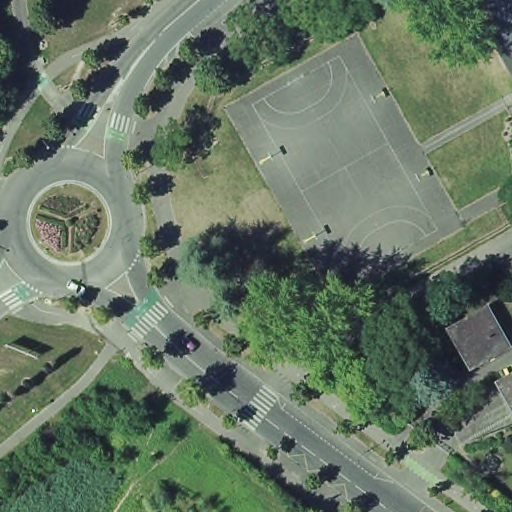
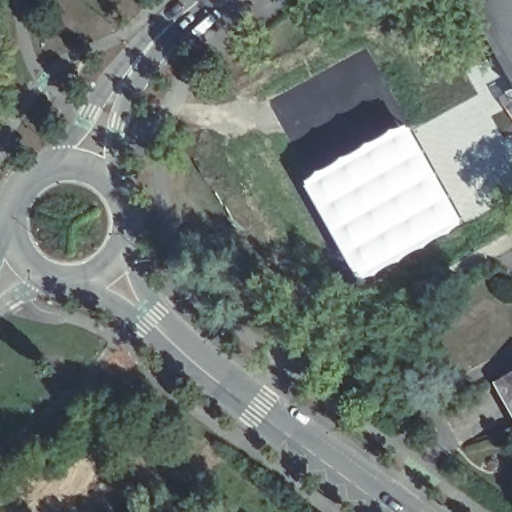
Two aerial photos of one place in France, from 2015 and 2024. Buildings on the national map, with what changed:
unchanged [(474,0),(512,0),(512,68),(474,0)]
new [(347,155),(412,120),(468,222),(365,281),(307,180),(347,155)]
demolished [(512,337),(512,350),(477,370),(452,328),(494,305),(512,337)]
unchanged [(502,381),(512,376),(512,400),(502,381)]

